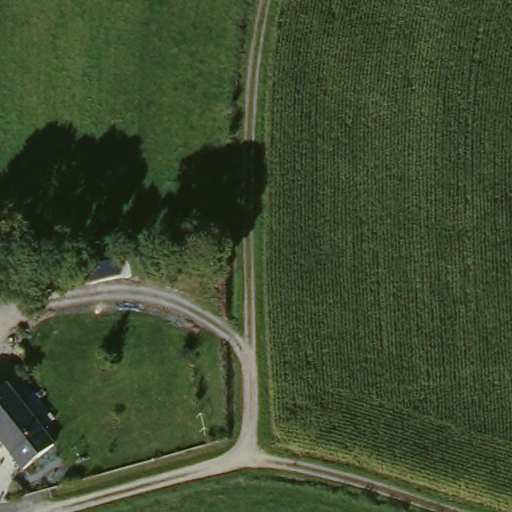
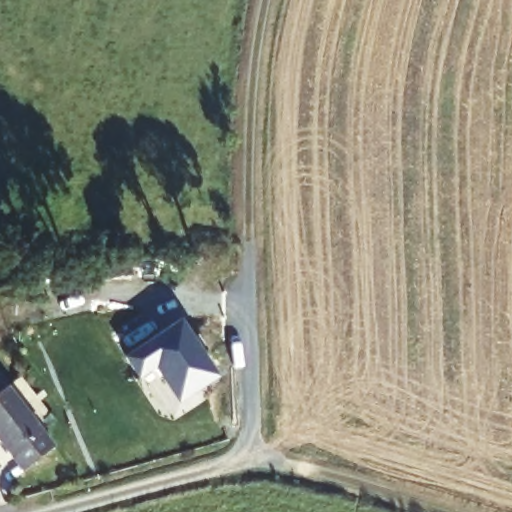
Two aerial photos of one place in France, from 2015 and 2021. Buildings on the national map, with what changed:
new [(101,282),(99,267),(132,264),(134,279),(101,282)]
new [(154,368),(136,378),(125,360),(180,323),(218,378),(179,404),(154,368)]
unchanged [(0,384),(9,379),(60,441),(31,464),(0,427),(0,384)]

